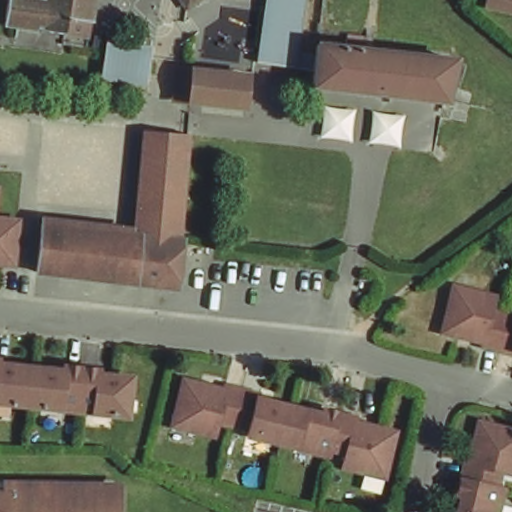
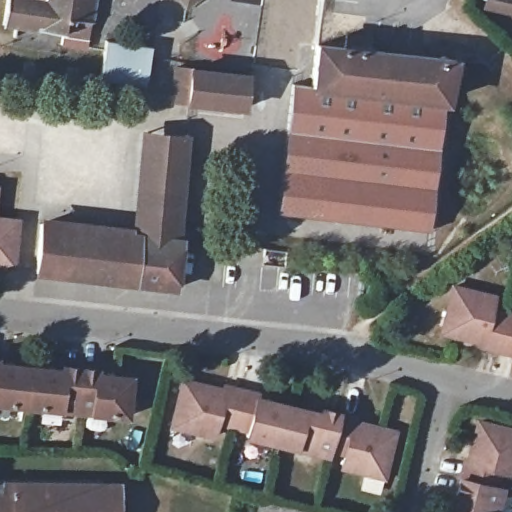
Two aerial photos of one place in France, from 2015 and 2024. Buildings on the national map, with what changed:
unchanged [(93,21),(91,36),(67,32),(8,23),(12,0),(99,0),(95,21),(93,21)]
unchanged [(185,0),(200,0),(190,8),(185,0)]
unchanged [(256,61),(264,0),(302,0),(295,67),(256,61)]
unchanged [(481,0),(512,0),(512,7),(507,6),(481,0)]
unchanged [(148,46),(147,56),(143,84),(98,78),(102,50),(103,39),(148,46)]
new [(309,88),(315,41),(460,58),(448,105),(438,105),(430,232),(276,213),(292,85),(309,88)]
demolished [(457,59),(444,100),(316,85),(321,42),(457,59)]
unchanged [(251,109),(190,101),(180,100),(184,67),(198,69),(255,76),(251,109)]
unchanged [(196,135),(181,241),(142,236),(157,129),(196,135)]
unchanged [(13,213),(8,259),(0,258),(0,212),(13,213)]
unchanged [(38,271),(44,225),(45,222),(142,236),(181,241),(183,241),(176,289),(132,283),(40,271),(38,271)]
unchanged [(489,304),(512,309),(512,348),(479,340),(480,336),(440,326),(451,280),(492,290),(489,304)]
unchanged [(59,370),(60,365),(93,369),(93,373),(126,376),(121,415),(87,412),(88,406),(56,403),(56,409),(0,403),(0,363),(59,370)]
unchanged [(221,384),(222,380),(256,388),(255,392),(318,408),(320,404),(352,412),(352,416),(392,426),(381,472),(340,462),(343,448),(312,440),(310,446),(244,430),(245,424),(215,416),(211,430),(170,420),(181,374),(221,384)]
unchanged [(512,436),(505,464),(491,461),(484,492),(490,494),(485,512),(445,512),(451,485),(448,485),(456,451),(460,452),(470,411),(512,421),(512,436)]
unchanged [(15,475),(110,476),(110,512),(0,512),(0,474),(15,475)]

